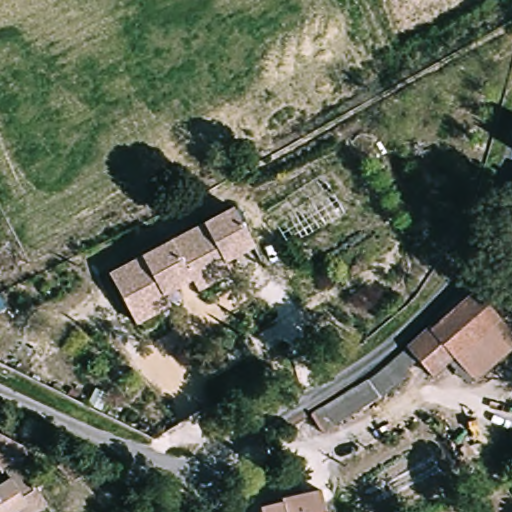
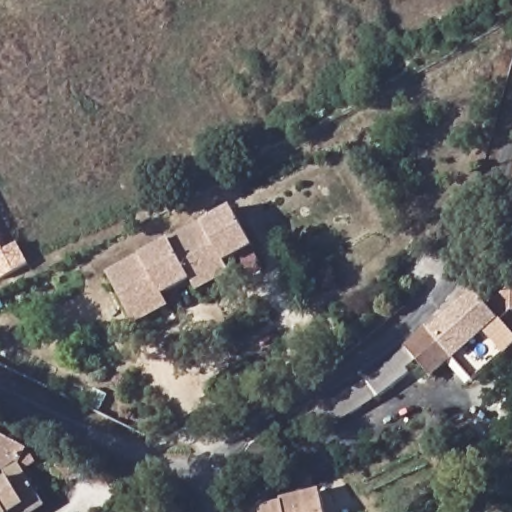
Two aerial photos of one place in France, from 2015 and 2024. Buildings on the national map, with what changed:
unchanged [(512,187),(512,225),(501,221),(512,187)]
unchanged [(106,270),(151,248),(233,208),(252,247),(223,261),(229,273),(194,290),(188,278),(171,286),(158,292),(164,304),(130,320),(106,270)]
new [(5,250),(18,243),(30,265),(0,280),(0,242),(5,250)]
unchanged [(512,285),(512,310),(500,320),(488,306),(512,285)]
unchanged [(488,306),(500,320),(512,310),(512,345),(472,380),(453,357),(430,330),(475,291),(488,306)]
new [(2,305),(0,306),(0,302),(2,305)]
unchanged [(432,376),(416,360),(405,347),(428,328),(430,330),(453,357),(432,376)]
unchanged [(416,360),(406,368),(410,372),(379,396),(366,380),(405,347),(416,360)]
unchanged [(366,380),(379,396),(321,431),(310,415),(366,380)]
unchanged [(7,477),(0,466),(0,435),(28,449),(36,462),(23,470),(45,506),(35,512),(0,512),(0,482),(7,477)]
unchanged [(80,473),(72,482),(56,467),(64,458),(80,473)]
unchanged [(259,508),(281,503),(281,499),(320,490),(324,512),(260,512),(259,508)]

